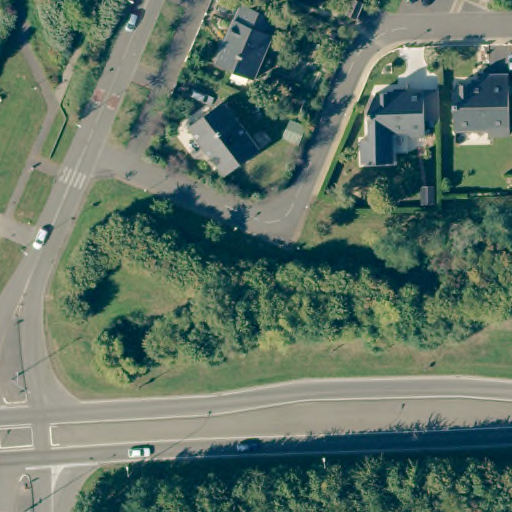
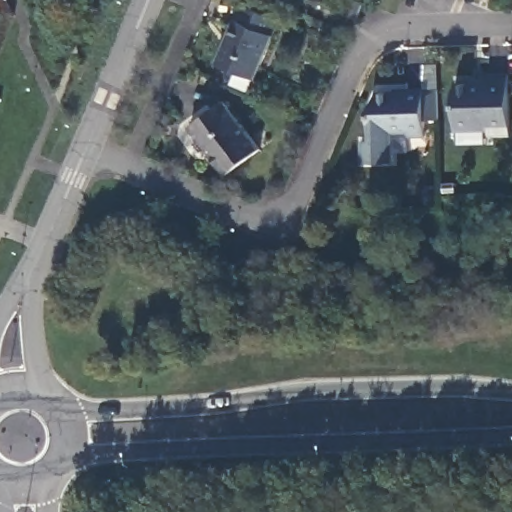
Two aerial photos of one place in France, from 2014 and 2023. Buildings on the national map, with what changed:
unchanged [(351,0),(361,0),(364,1),(357,18),(346,14),(351,0)]
unchanged [(278,22),(254,81),(217,65),(241,6),(278,22)]
unchanged [(454,92),(457,85),(480,85),(480,79),(484,75),(508,75),(508,135),(488,136),(488,130),(455,130),(454,92)]
unchanged [(380,89),(411,87),(411,86),(429,85),(429,86),(443,85),(445,112),(445,116),(430,116),(430,132),(412,132),(411,125),(395,126),(396,156),(366,157),(366,135),(375,135),(374,127),(373,106),(380,89)]
unchanged [(223,103),(258,151),(226,175),(190,128),(223,103)]

